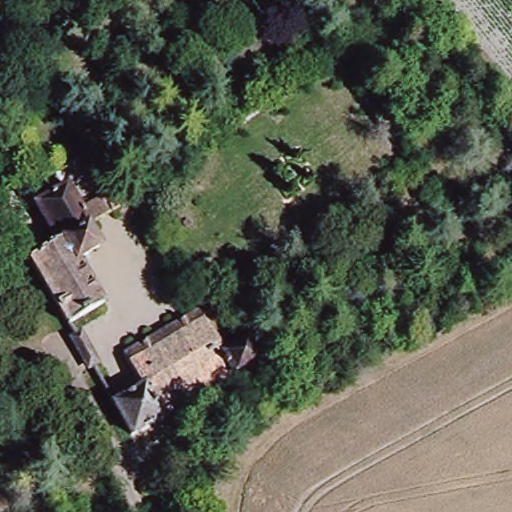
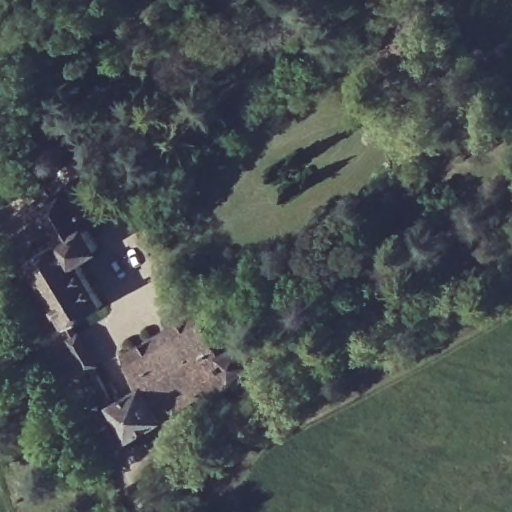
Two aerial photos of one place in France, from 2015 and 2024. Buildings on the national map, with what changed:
unchanged [(90,224),(63,242),(38,199),(64,182),(87,220),(90,224)]
unchanged [(124,193),(132,205),(92,232),(104,253),(82,267),(102,309),(72,327),(34,260),(63,242),(90,224),(87,220),(124,193)]
unchanged [(99,410),(121,398),(108,370),(155,341),(152,337),(186,317),(207,356),(229,343),(243,368),(221,381),(116,443),(99,410)]

